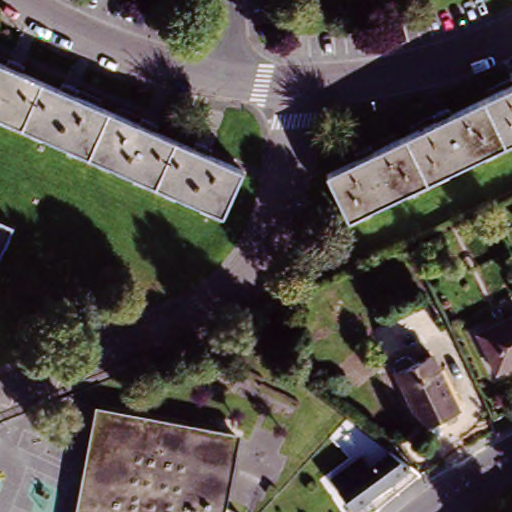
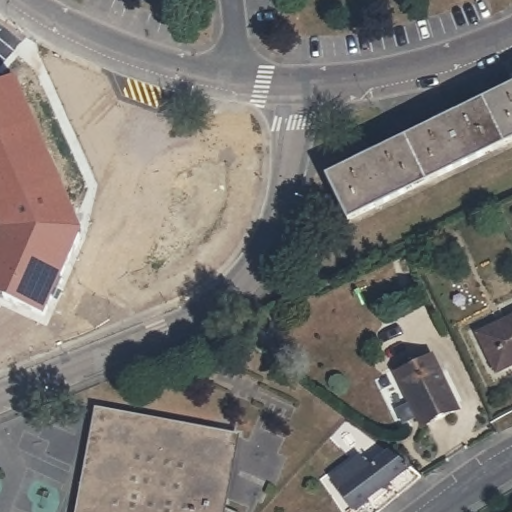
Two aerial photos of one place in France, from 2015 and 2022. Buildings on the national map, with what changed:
demolished [(10,70),(12,65),(27,72),(25,77),(64,94),(66,90),(80,95),(79,100),(143,128),(145,124),(160,130),(159,135),(198,151),(200,146),(215,153),(214,159),(225,164),(245,172),(225,217),(0,120),(0,66),(10,70)]
new [(61,120),(71,213),(0,213),(0,73),(61,120)]
unchanged [(367,150),(370,156),(433,126),(430,120),(446,114),(449,119),(512,88),(510,83),(512,82),(512,143),(345,223),(324,179),(355,163),(352,157),(367,150)]
demolished [(0,265),(0,222),(15,229),(0,265)]
unchanged [(497,365),(491,367),(476,335),(512,319),(512,367),(500,372),(497,365)]
unchanged [(441,356),(467,410),(430,426),(405,373),(441,356)]
unchanged [(226,512),(82,512),(84,500),(87,481),(100,410),(241,435),(226,512)]
unchanged [(339,491),(342,489),(334,478),(361,456),(370,467),(392,450),(412,466),(354,511),(339,491)]

